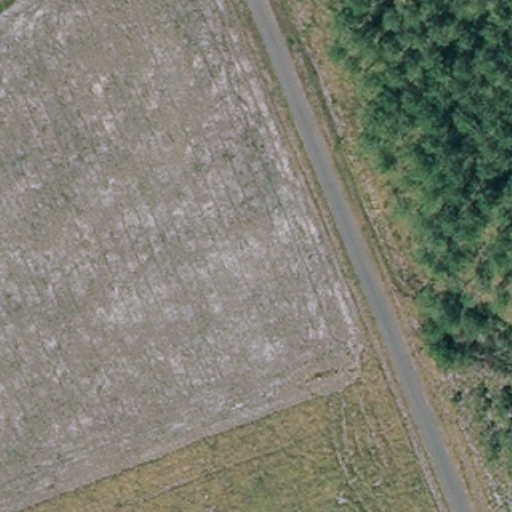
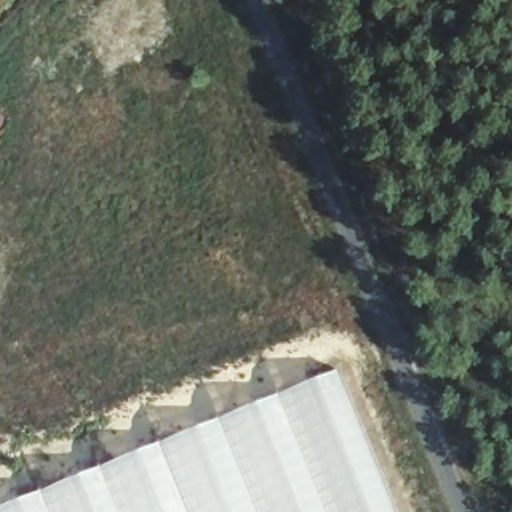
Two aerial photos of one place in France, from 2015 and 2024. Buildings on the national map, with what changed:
new [(398,512),(0,512),(0,507),(340,370),(398,512)]

